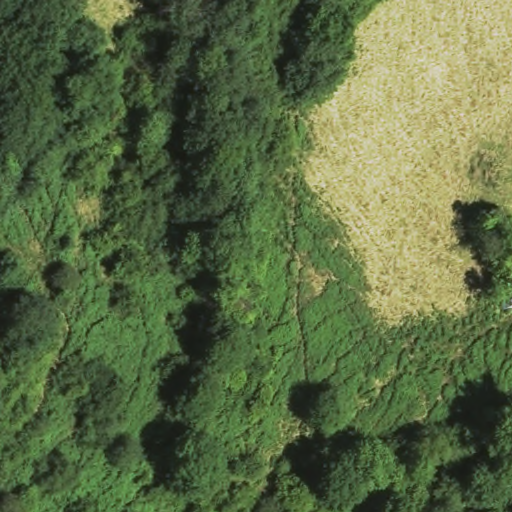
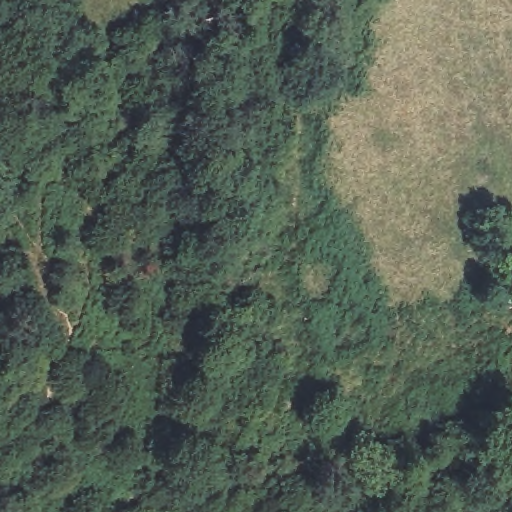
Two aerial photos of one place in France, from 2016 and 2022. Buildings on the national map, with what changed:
unchanged [(499,284),(512,282),(512,308),(505,309),(499,284)]

